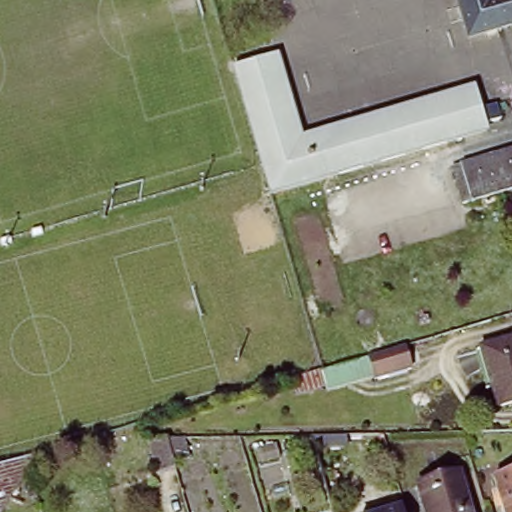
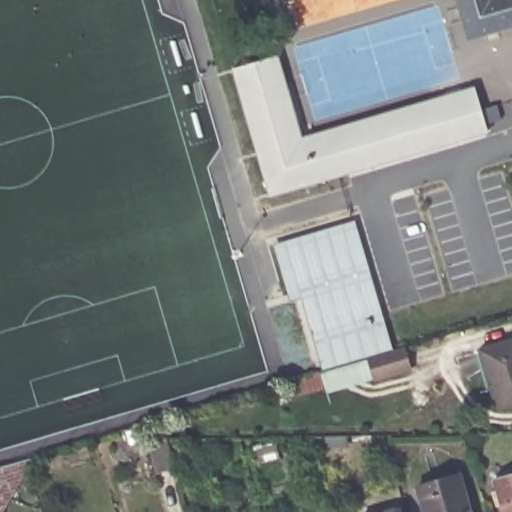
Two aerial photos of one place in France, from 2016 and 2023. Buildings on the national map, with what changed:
unchanged [(457,0),(512,0),(512,27),(468,39),(457,0)]
unchanged [(272,58),(298,141),(472,90),(478,112),(494,108),(498,122),(482,126),(484,133),(267,197),(229,70),(272,58)]
demolished [(512,195),(463,209),(453,175),(512,157),(512,195)]
new [(303,297),(294,300),(274,244),(359,219),(394,339),(323,361),(303,297)]
unchanged [(478,351),(512,342),(512,406),(494,411),(478,351)]
unchanged [(395,349),(405,371),(372,381),(325,393),(325,388),(297,397),(290,379),(395,349)]
unchanged [(170,468),(153,473),(143,439),(162,439),(177,439),(184,459),(169,463),(170,468)]
unchanged [(28,468),(4,512),(0,512),(0,467),(35,457),(28,468)]
unchanged [(512,512),(498,512),(489,482),(512,475),(512,512)]
unchanged [(455,478),(465,512),(421,512),(415,489),(455,478)]
unchanged [(400,511),(400,512),(396,512),(400,511)]

